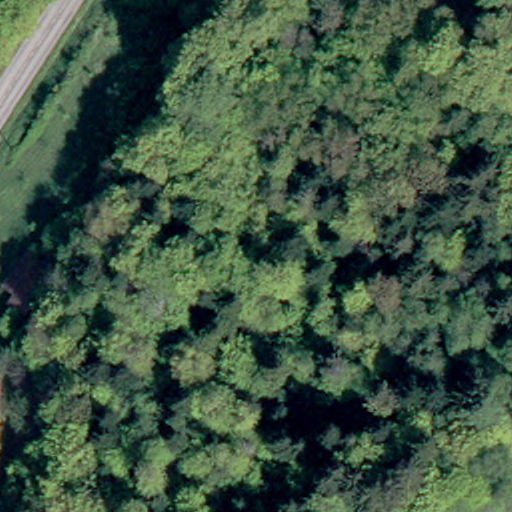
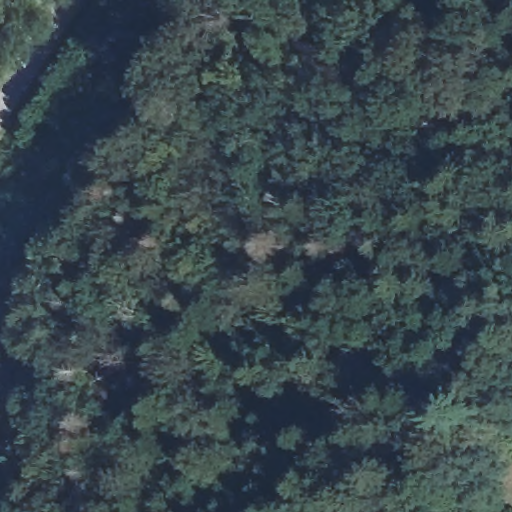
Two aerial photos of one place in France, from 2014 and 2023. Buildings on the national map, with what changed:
unchanged [(0,308),(0,294),(1,294),(11,284),(30,266),(37,273),(41,278),(24,295),(3,313),(0,308)]

